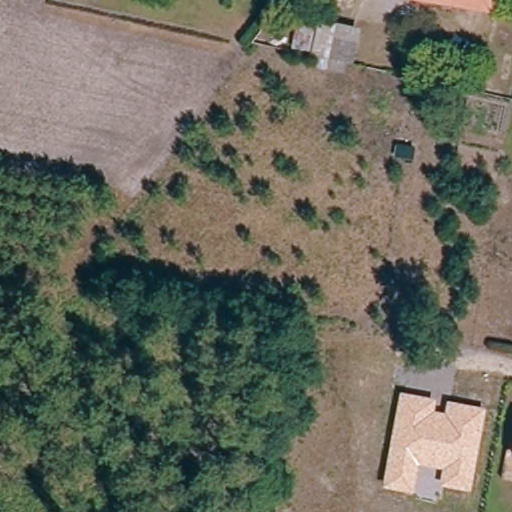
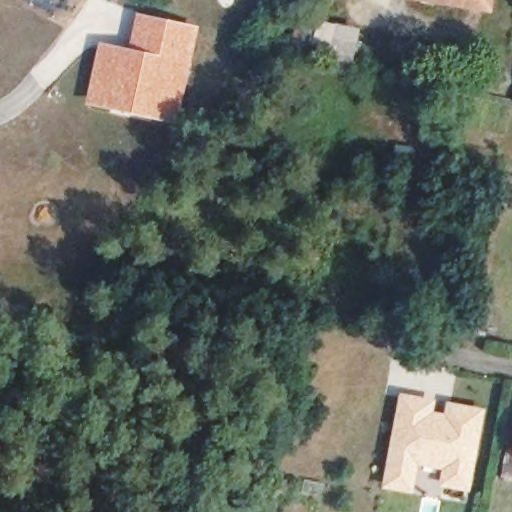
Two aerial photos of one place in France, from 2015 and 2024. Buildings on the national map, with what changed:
unchanged [(489,4),(452,0),(490,0),(489,4)]
new [(100,42),(131,49),(139,13),(198,26),(178,116),(174,115),(172,122),(86,103),(100,42)]
unchanged [(435,399),(432,412),(445,413),(447,401),(485,409),(469,492),(439,487),(443,469),(419,464),(414,494),(382,488),(400,392),(435,399)]

